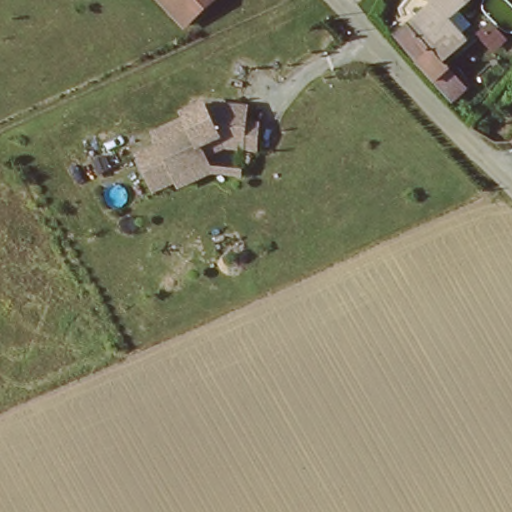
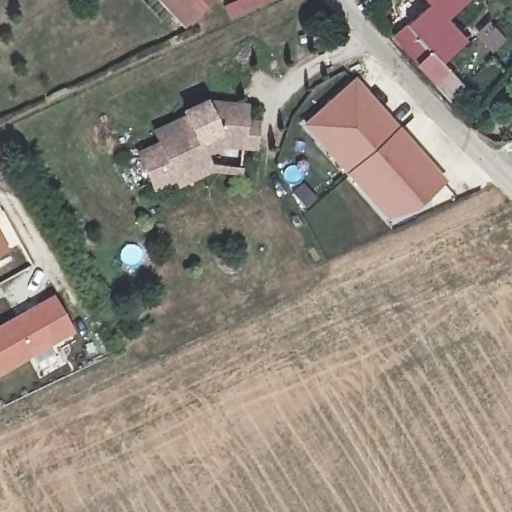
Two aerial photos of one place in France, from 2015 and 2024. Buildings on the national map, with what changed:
unchanged [(178,30),(151,0),(207,0),(178,30)]
unchanged [(445,101),(393,37),(427,6),(422,0),(465,0),(445,19),(464,40),(441,62),(462,86),(445,101)]
new [(354,79),(398,127),(447,181),(412,212),(387,220),(346,175),(301,125),(354,79)]
unchanged [(244,121),(257,121),(252,151),(221,148),(218,170),(181,188),(175,179),(151,195),(132,153),(150,142),(145,132),(178,112),(204,100),(246,105),(244,121)]
new [(53,290),(73,325),(0,366),(0,319),(53,290)]

